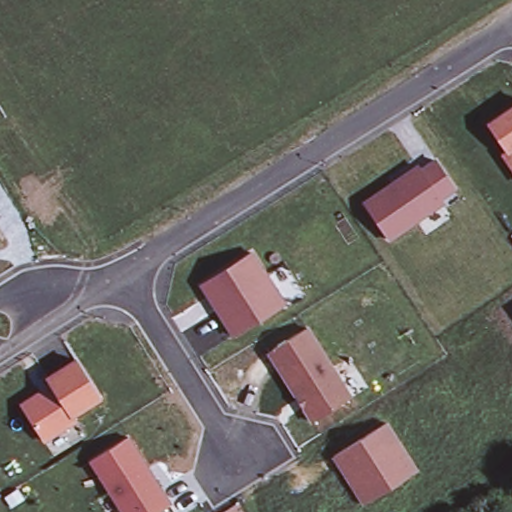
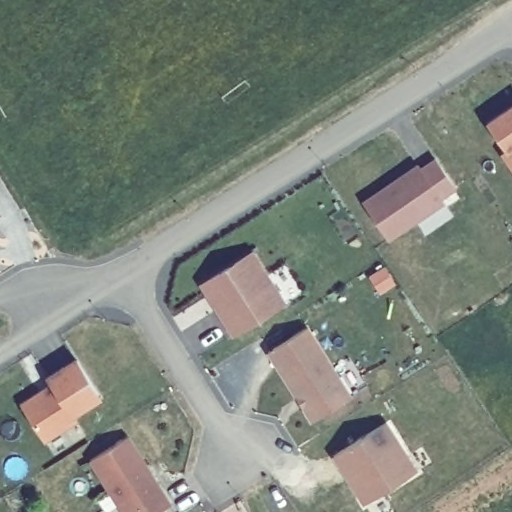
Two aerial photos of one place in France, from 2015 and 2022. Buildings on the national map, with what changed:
unchanged [(487,124),(512,107),(512,162),(487,124)]
unchanged [(457,188),(442,199),(445,204),(389,242),(362,204),(420,165),(423,170),(438,160),(457,188)]
unchanged [(202,285),(252,253),(284,304),(233,336),(216,308),(210,297),(202,285)]
unchanged [(350,397),(312,422),(277,366),(268,352),(272,349),(307,328),(350,397)]
unchanged [(76,361),(100,398),(72,416),(75,421),(43,442),(20,406),(40,393),(51,386),(47,379),(76,361)]
unchanged [(334,455),(385,423),(416,471),(365,504),(352,484),(342,469),(334,455)]
unchanged [(162,512),(121,512),(91,461),(132,435),(176,503),(162,512)]

